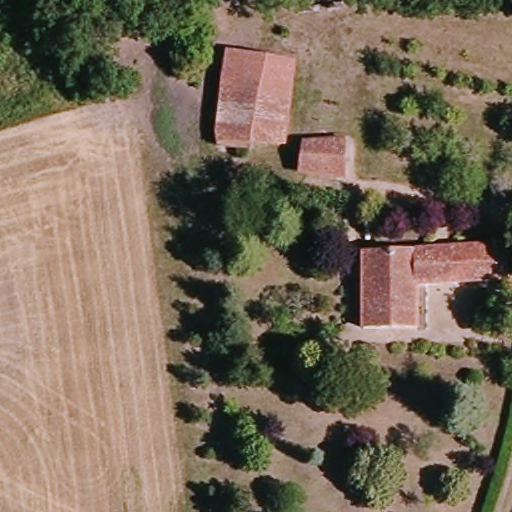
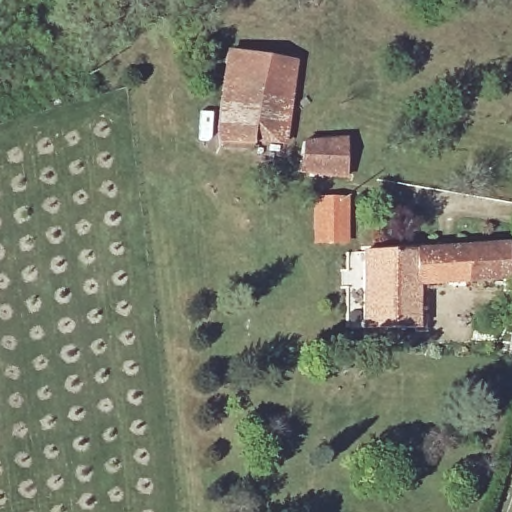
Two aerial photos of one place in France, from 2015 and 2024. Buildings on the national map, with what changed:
unchanged [(272,50),(294,55),(282,150),(252,145),(251,154),(220,150),(232,58),(270,61),(272,50)]
unchanged [(345,180),(300,175),(302,145),(343,141),(345,180)]
new [(314,197),(348,197),(350,243),(315,242),(314,197)]
unchanged [(363,255),(440,255),(507,250),(506,279),(512,279),(512,297),(503,297),(503,287),(417,290),(417,332),(362,330),(363,255)]

